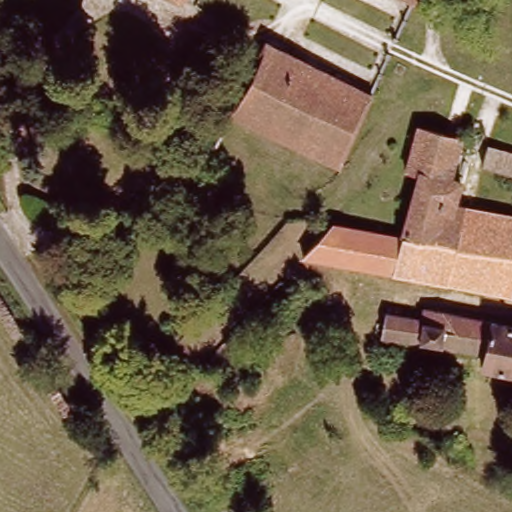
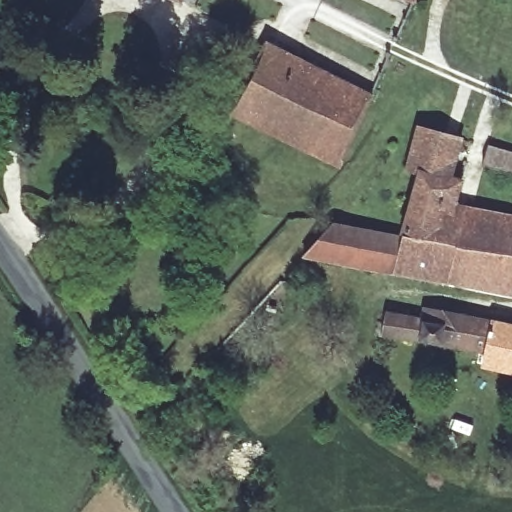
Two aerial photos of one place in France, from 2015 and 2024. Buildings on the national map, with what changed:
unchanged [(178,1),(176,0),(178,0),(178,1)]
unchanged [(414,2),(410,0),(415,0),(414,2)]
unchanged [(234,114),(254,69),(267,43),(371,95),(336,167),(234,114)]
unchanged [(462,246),(413,237),(419,198),(426,172),(415,171),(421,127),(460,135),(451,172),(462,172),(454,206),(468,209),(462,246)]
unchanged [(482,156),(484,142),(512,149),(512,163),(482,156)]
unchanged [(335,221),(413,237),(462,246),(468,209),(512,218),(512,284),(510,297),(307,255),(335,221)]
unchanged [(479,362),(481,352),(375,330),(375,317),(384,317),(385,305),(423,312),(426,301),(512,319),(512,368),(479,362)]

